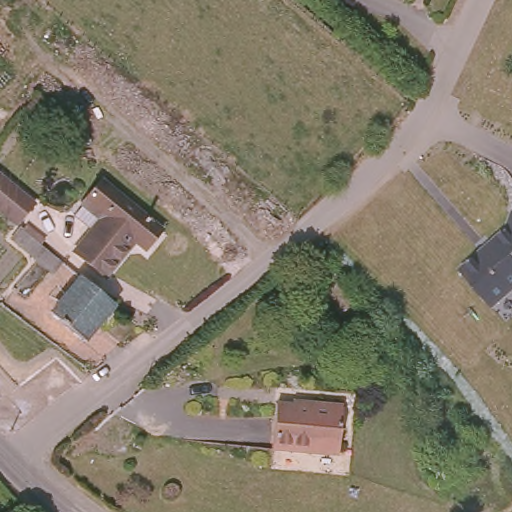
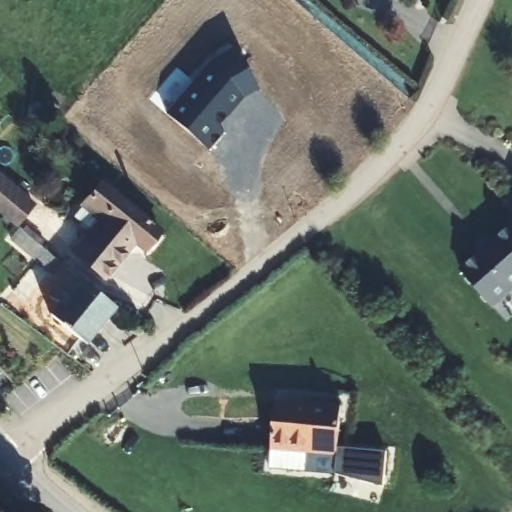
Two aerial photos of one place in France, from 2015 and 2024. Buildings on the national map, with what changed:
new [(257,89),(240,99),(219,126),(224,131),(208,148),(167,110),(208,62),(233,45),(257,89)]
unchanged [(20,225),(0,209),(0,171),(39,203),(20,225)]
unchanged [(144,245),(135,237),(104,273),(73,247),(100,215),(81,199),(100,176),(160,226),(144,245)]
unchanged [(480,247),(480,248),(491,239),(490,238),(506,223),(512,207),(512,281),(490,301),(459,265),(480,247)]
unchanged [(52,271),(35,257),(45,245),(62,259),(52,271)]
unchanged [(81,348),(50,321),(80,284),(112,310),(81,348)]
unchanged [(334,454),(309,451),(309,456),(267,451),(272,408),(305,412),(306,402),(339,406),(334,454)]

